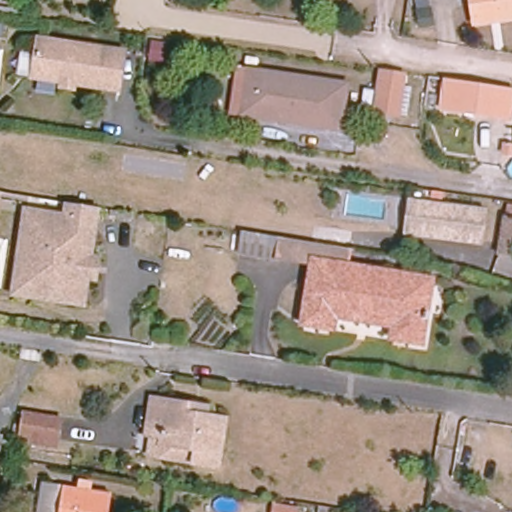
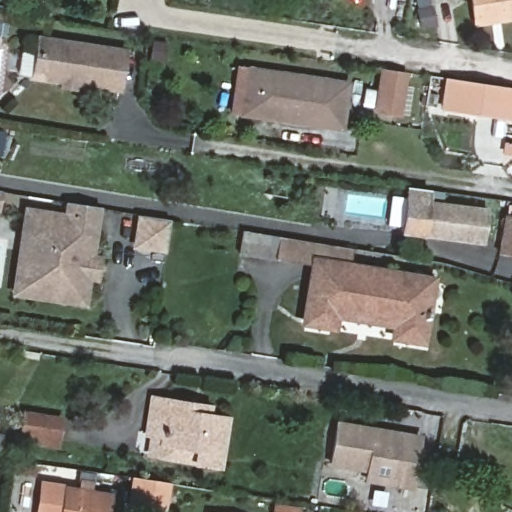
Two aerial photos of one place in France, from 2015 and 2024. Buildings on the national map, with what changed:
unchanged [(468,0),(512,0),(512,17),(471,23),(468,0)]
unchanged [(65,86),(66,81),(32,76),(38,38),(128,51),(122,89),(78,83),(77,88),(65,86)]
unchanged [(406,73),(400,115),(377,111),(383,69),(406,73)]
unchanged [(337,84),(331,127),(269,118),(270,110),(243,107),(248,72),(337,84)]
unchanged [(469,82),(511,89),(507,118),(440,108),(445,79),(469,82)]
unchanged [(94,253),(101,254),(96,283),(88,282),(84,308),(9,294),(22,206),(62,211),(62,202),(101,208),(94,253)]
unchanged [(487,214),(483,244),(432,238),(422,236),(406,234),(411,203),(426,205),(435,206),(487,214)]
unchanged [(512,262),(485,258),(489,238),(492,218),(507,220),(509,212),(512,212),(512,262)]
new [(134,217),(166,222),(161,253),(129,248),(134,217)]
unchanged [(430,282),(420,339),(396,335),(398,323),(334,313),(332,324),(307,320),(316,266),(239,253),(242,232),(353,249),(349,269),(430,282)]
unchanged [(205,402),(203,411),(222,414),(215,462),(157,453),(160,432),(143,429),(148,394),(205,402)]
unchanged [(22,439),(26,414),(60,419),(56,444),(22,439)]
new [(362,482),(364,471),(326,464),(334,419),(422,433),(413,490),(362,482)]
unchanged [(1,437),(0,446),(0,437),(1,437)]
unchanged [(107,493),(104,512),(34,512),(39,482),(107,493)]
unchanged [(300,507),(300,512),(286,512),(287,505),(300,507)]

